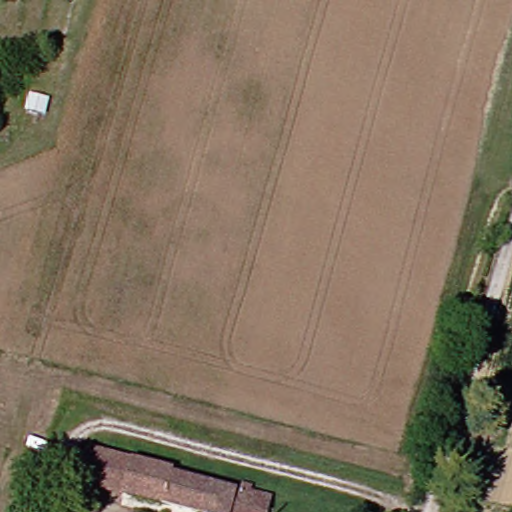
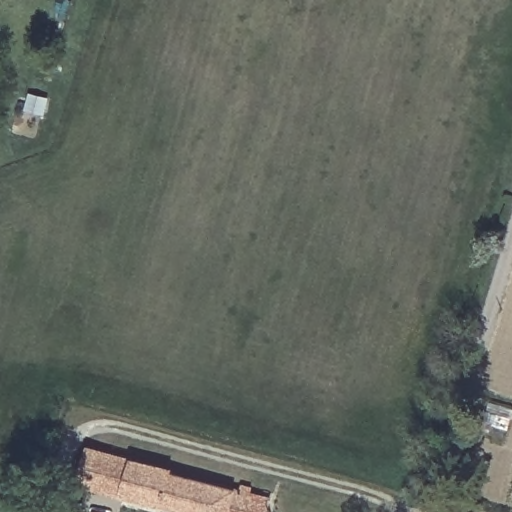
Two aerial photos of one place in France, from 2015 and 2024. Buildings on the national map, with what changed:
unchanged [(232,491),(268,500),(265,512),(171,512),(75,487),(75,485),(60,480),(68,449),(146,470),(149,457),(165,461),(197,470),(216,474),(236,479),(232,491)]

